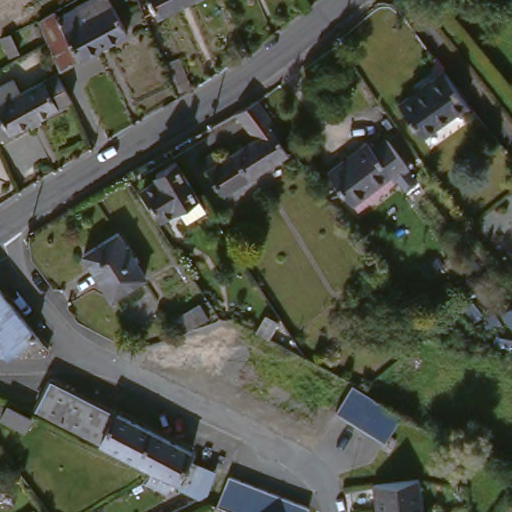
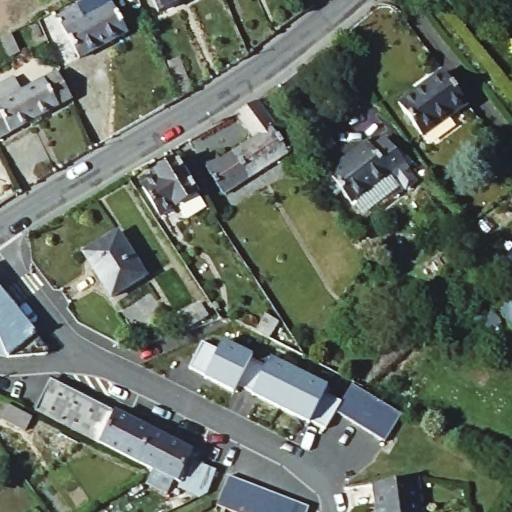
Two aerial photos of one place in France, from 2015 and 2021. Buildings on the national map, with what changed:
unchanged [(105,0),(123,33),(76,57),(53,15),(83,0),(105,0)]
unchanged [(156,0),(184,0),(163,11),(156,0)]
unchanged [(192,95),(172,60),(186,53),(204,86),(192,95)]
unchanged [(400,104),(443,71),(468,104),(424,135),(400,104)]
unchanged [(0,141),(0,87),(9,81),(18,97),(58,75),(73,100),(0,141)]
unchanged [(259,97),(283,129),(299,156),(228,193),(206,155),(220,148),(224,155),(254,138),(238,109),(259,97)]
unchanged [(369,143),(375,149),(389,139),(413,168),(396,182),(391,176),(354,203),(332,173),(369,143)]
unchanged [(198,195),(163,217),(146,189),(156,183),(153,177),(177,162),(198,195)]
unchanged [(118,229),(145,274),(109,294),(82,250),(118,229)]
unchanged [(21,358),(0,331),(0,282),(56,352),(21,358)]
unchanged [(501,314),(512,306),(512,329),(501,314)]
unchanged [(12,360),(0,357),(0,331),(21,358),(12,360)]
new [(203,378),(188,369),(201,340),(219,348),(223,341),(251,356),(249,361),(264,369),(269,359),(326,387),(324,394),(339,402),(325,429),(311,422),(309,424),(252,397),(236,389),(233,393),(203,378)]
demolished [(323,423),(226,374),(243,341),(340,391),(323,423)]
unchanged [(407,410),(391,437),(341,408),(356,381),(407,410)]
unchanged [(39,412),(51,386),(153,433),(141,459),(39,412)]
unchanged [(23,440),(0,429),(0,425),(7,411),(31,423),(23,440)]
unchanged [(183,493),(185,489),(188,482),(141,459),(153,433),(172,442),(196,453),(191,461),(206,468),(209,469),(223,475),(211,501),(204,504),(183,493)]
unchanged [(223,501),(235,473),(315,503),(312,512),(251,512),(223,501)]
unchanged [(426,512),(376,512),(373,477),(421,476),(426,512)]
unchanged [(505,507),(512,496),(512,512),(505,507)]

